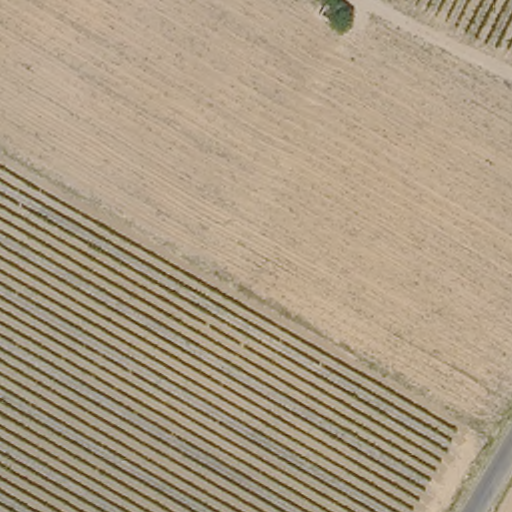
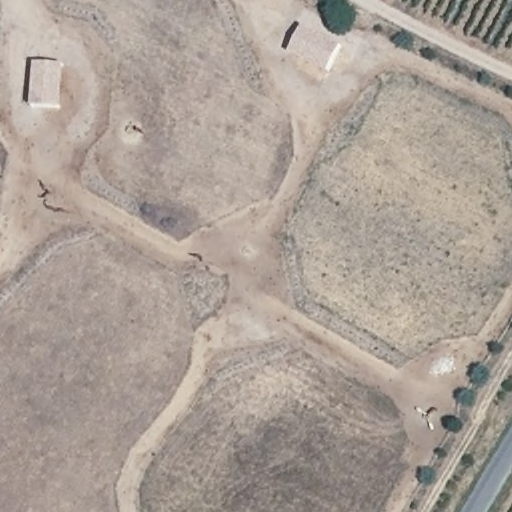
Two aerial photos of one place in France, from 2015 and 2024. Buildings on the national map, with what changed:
unchanged [(355,14),(344,33),(320,21),(329,4),(355,14)]
new [(342,47),(329,73),(289,53),(303,27),(342,47)]
new [(34,63),(66,65),(63,108),(31,106),(34,63)]

